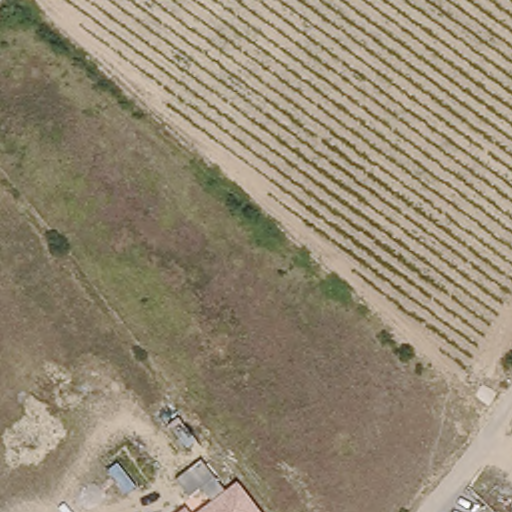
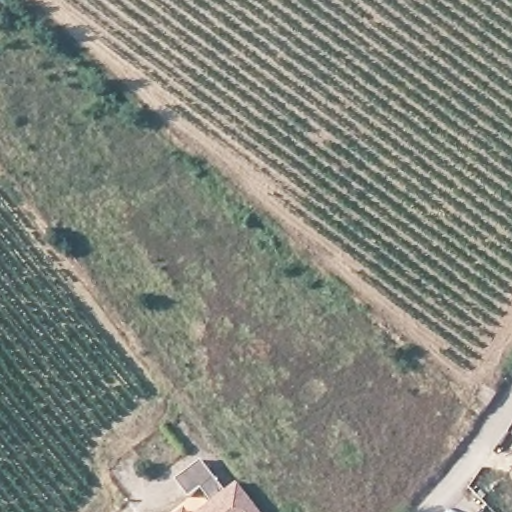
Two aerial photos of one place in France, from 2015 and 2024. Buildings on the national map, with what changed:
unchanged [(213,502),(202,488),(189,498),(176,482),(203,461),(226,492),(239,483),(261,512),(200,512),(213,502)]
unchanged [(187,509),(190,512),(183,512),(187,509)]

